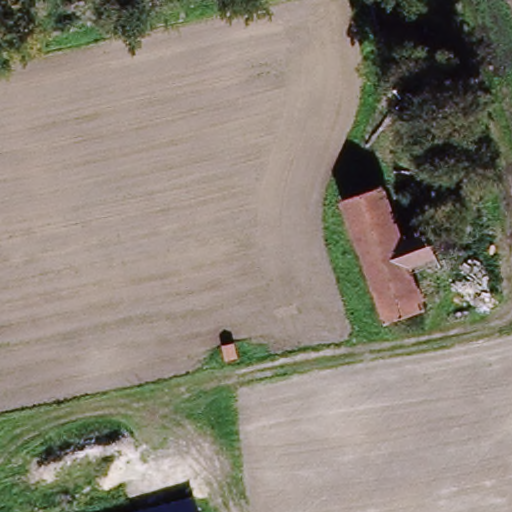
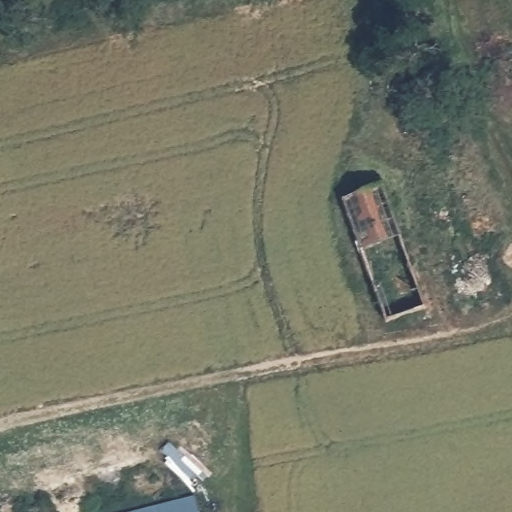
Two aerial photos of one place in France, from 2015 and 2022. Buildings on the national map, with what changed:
unchanged [(436,314),(391,331),(345,208),(390,192),(405,232),(425,286),(436,314)]
unchanged [(445,217),(466,271),(425,286),(405,232),(445,217)]
unchanged [(198,512),(175,512),(197,506),(198,512)]

